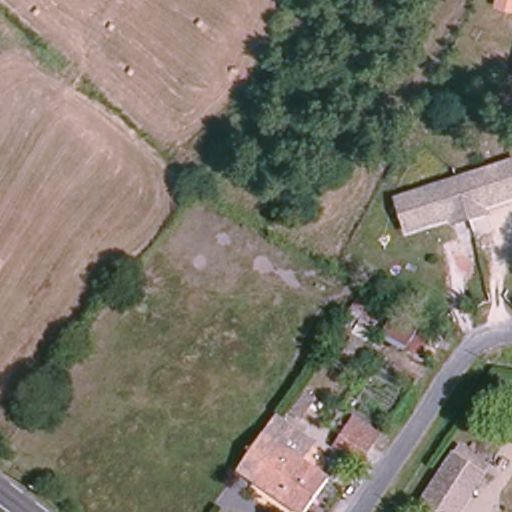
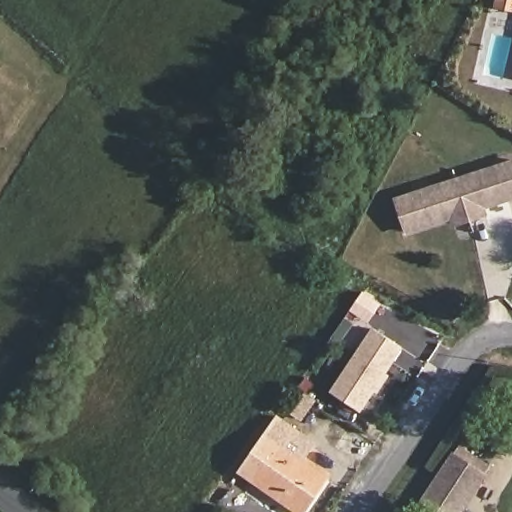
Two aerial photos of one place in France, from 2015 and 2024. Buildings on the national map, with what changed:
unchanged [(482,215),(451,225),(450,217),(405,232),(395,199),(440,185),(441,190),(472,181),(471,175),(512,162),(512,198),(482,208),(482,215)]
new [(382,304),(368,324),(350,312),(364,292),(382,304)]
new [(361,413),(330,392),(373,327),(405,348),(361,413)]
unchanged [(267,433),(277,416),(313,441),(303,458),(332,478),(307,512),(297,512),(240,472),(267,433)]
unchanged [(361,469),(332,449),(347,425),(377,443),(361,469)]
unchanged [(457,512),(433,512),(420,504),(450,452),(481,470),(457,512)]

